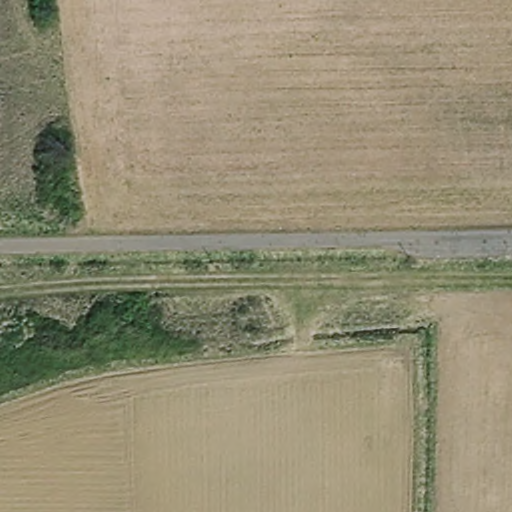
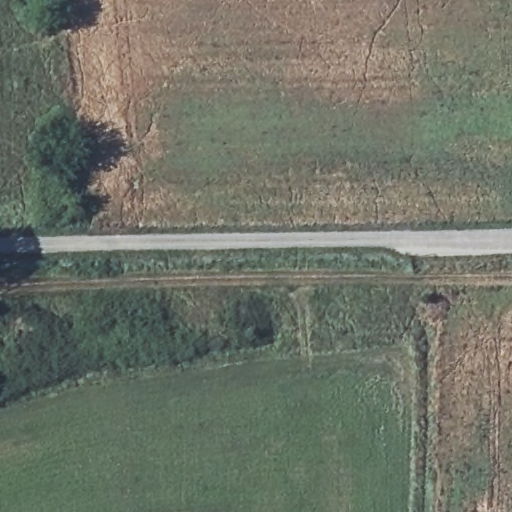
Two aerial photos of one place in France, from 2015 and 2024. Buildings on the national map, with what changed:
[]

